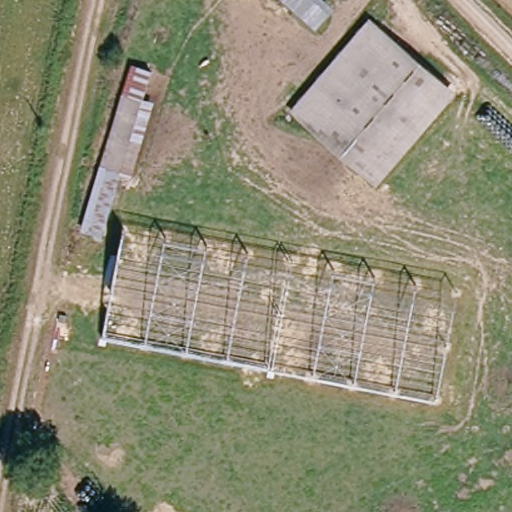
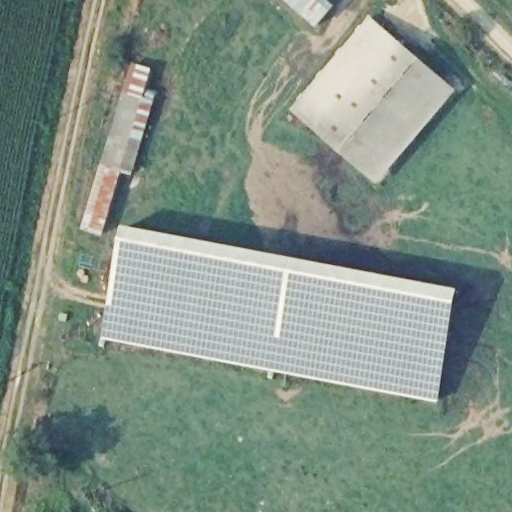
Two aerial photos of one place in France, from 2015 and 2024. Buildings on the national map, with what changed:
unchanged [(282,0),(331,0),(338,6),(315,30),(282,0)]
unchanged [(373,178),(299,115),(379,21),(453,85),(373,178)]
unchanged [(123,172),(101,237),(81,229),(134,61),(158,68),(147,97),(158,100),(136,176),(123,172)]
new [(123,227),(459,291),(439,403),(103,340),(123,227)]

